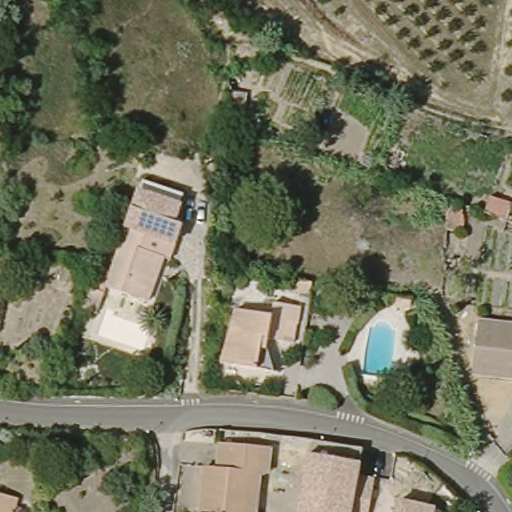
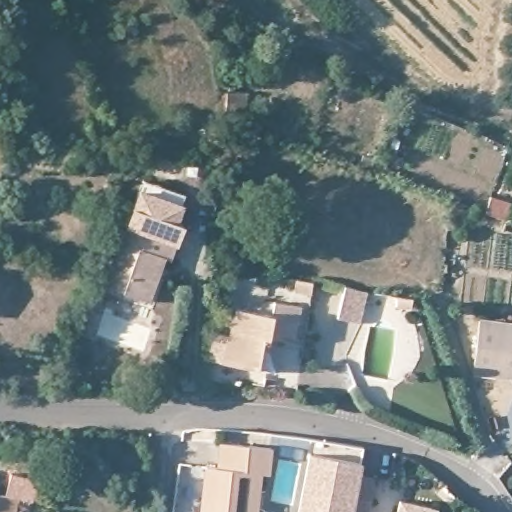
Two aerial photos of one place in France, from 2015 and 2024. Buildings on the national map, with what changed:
unchanged [(258,106),(223,107),(221,84),(255,85),(258,106)]
unchanged [(512,183),(512,212),(481,204),(492,179),(512,183)]
unchanged [(136,189),(140,180),(185,195),(177,223),(184,225),(175,242),(125,223),(136,189)]
unchanged [(100,286),(125,223),(175,242),(165,267),(153,263),(138,300),(125,296),(100,286)]
unchanged [(282,285),(285,273),(297,274),(308,276),(306,289),(295,288),(282,285)]
new [(344,284),(366,288),(361,320),(338,317),(344,284)]
unchanged [(406,290),(426,293),(425,304),(405,302),(406,290)]
unchanged [(110,292),(125,296),(116,320),(103,315),(110,292)]
unchanged [(267,294),(293,298),(286,334),(261,330),(259,335),(281,368),(280,372),(258,367),(221,358),(234,302),(265,309),(267,294)]
unchanged [(512,322),(512,376),(480,371),(488,319),(512,322)]
unchanged [(235,461),(237,437),(290,443),(288,469),(278,468),(268,466),(264,512),(210,512),(216,460),(235,461)]
unchanged [(302,512),(308,443),(360,448),(346,512),(302,512)]
unchanged [(20,495),(14,512),(0,512),(0,488),(20,495)]
unchanged [(433,509),(433,512),(395,512),(397,499),(433,509)]

